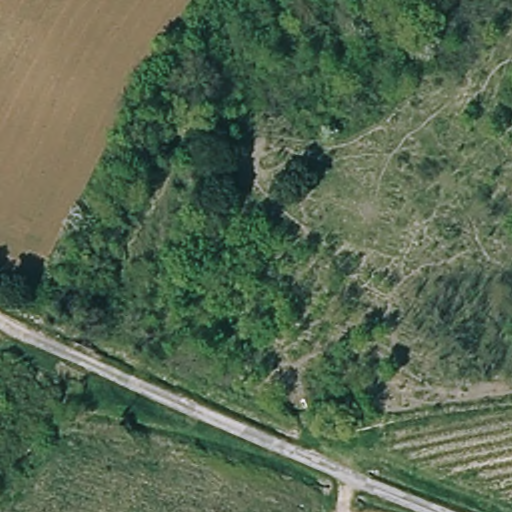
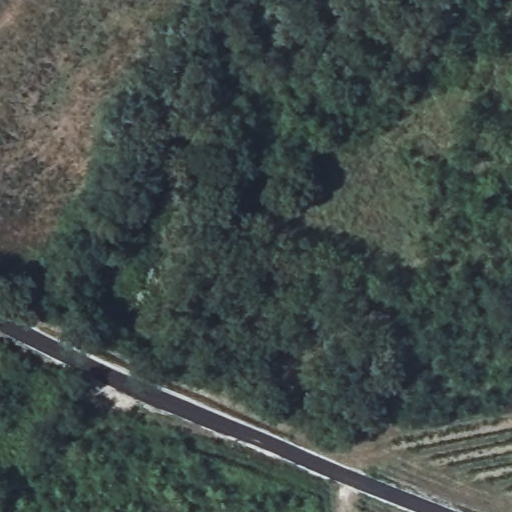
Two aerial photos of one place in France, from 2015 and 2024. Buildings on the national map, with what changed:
[]

